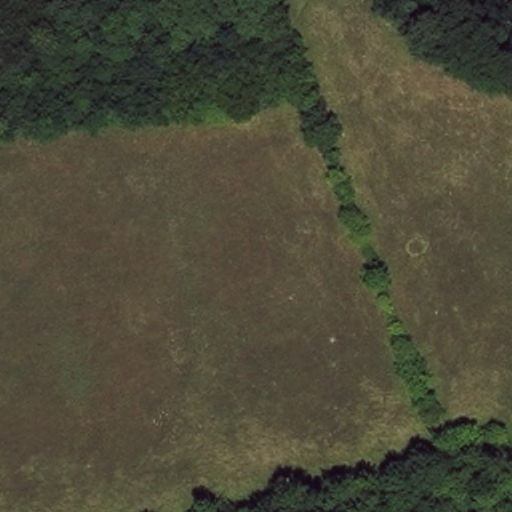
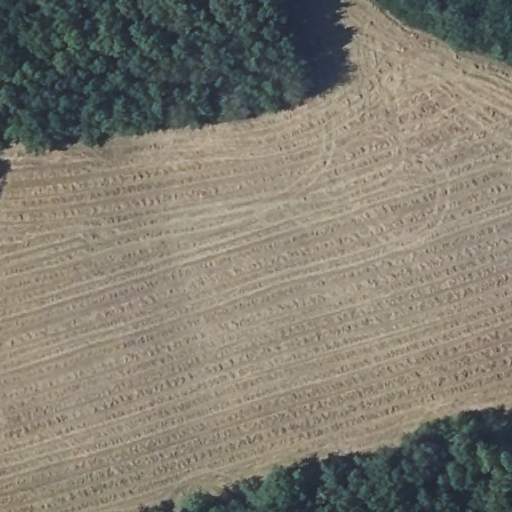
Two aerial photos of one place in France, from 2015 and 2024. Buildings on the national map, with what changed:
[]

